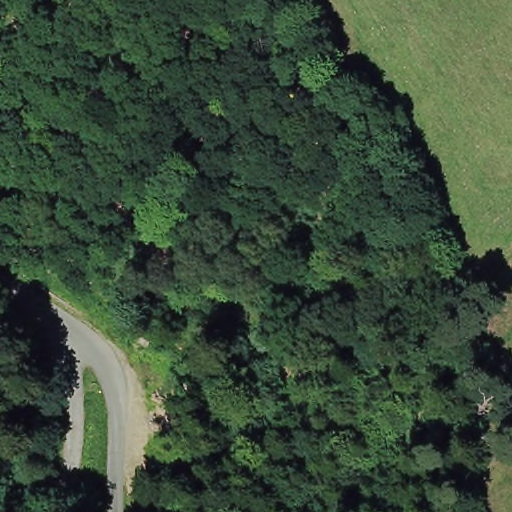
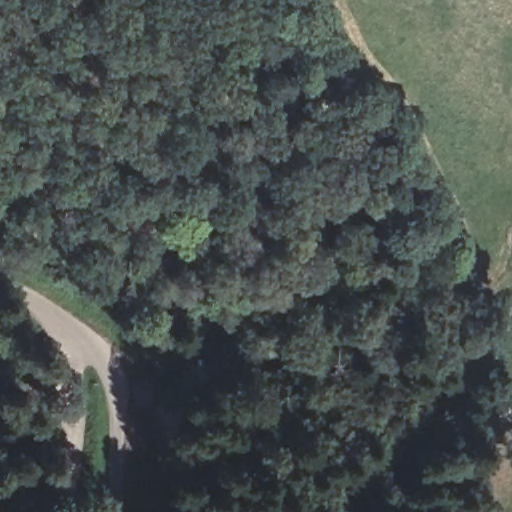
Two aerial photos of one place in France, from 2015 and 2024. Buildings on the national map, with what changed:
unchanged [(499,235),(512,226),(512,244),(508,247),(501,238),(499,235)]

